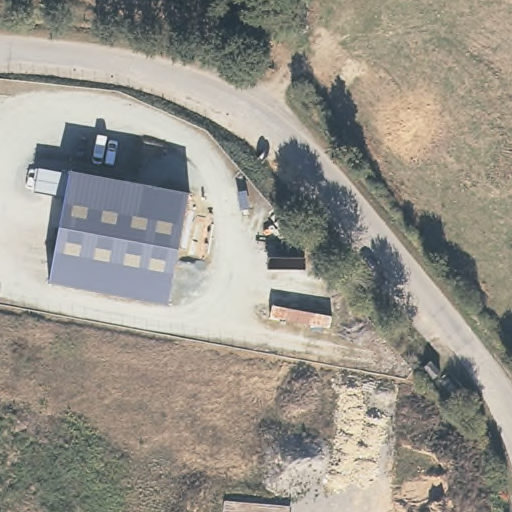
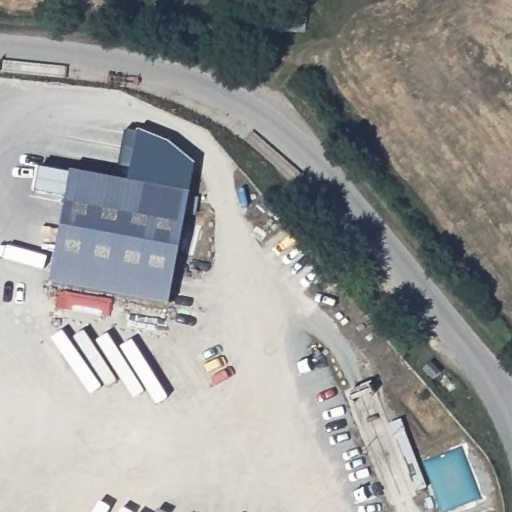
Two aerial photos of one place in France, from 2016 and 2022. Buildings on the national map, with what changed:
new [(191,192),(129,181),(137,128),(169,141),(195,165),(191,192)]
unchanged [(71,171),(191,192),(170,303),(50,282),(71,171)]

